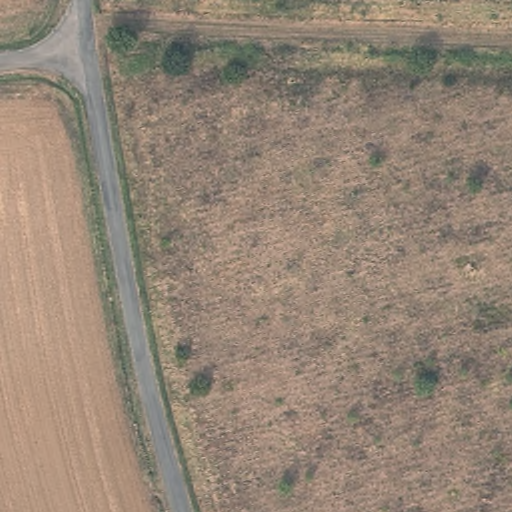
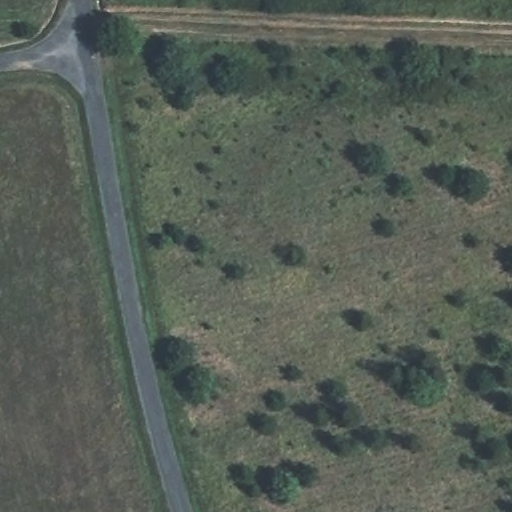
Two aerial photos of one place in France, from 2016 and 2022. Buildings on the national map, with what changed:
[]

